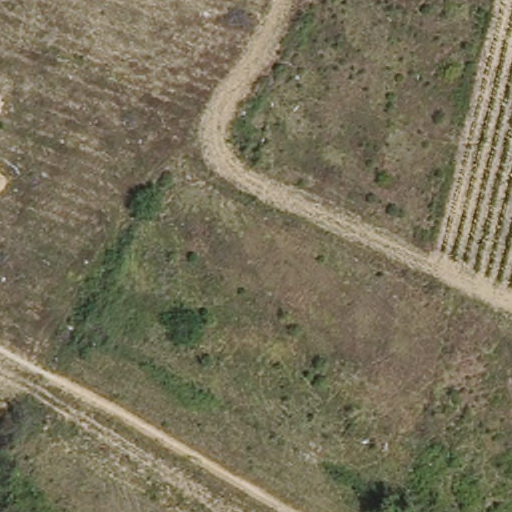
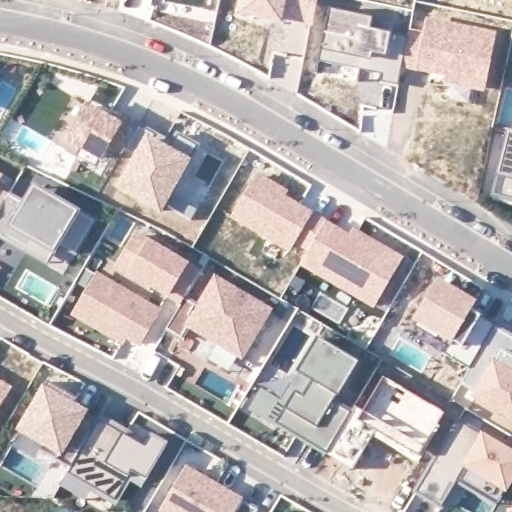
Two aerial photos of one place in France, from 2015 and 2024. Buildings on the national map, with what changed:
new [(238,0),(288,0),(284,22),(235,15),(238,0)]
new [(288,0),(317,0),(312,25),(284,22),(288,0)]
new [(329,8),(373,16),(370,28),(391,33),(387,59),(404,61),(400,68),(398,86),(377,81),(378,76),(374,75),(374,73),(319,60),(329,8)]
new [(404,61),(410,30),(422,32),(425,16),(497,30),(485,92),(471,90),(469,102),(447,97),(450,86),(443,85),(444,79),(400,68),(404,61)]
new [(108,115),(116,106),(142,122),(123,157),(112,149),(102,164),(64,142),(88,101),(108,115)]
new [(145,130),(171,145),(191,157),(193,158),(161,216),(115,188),(145,130)]
new [(498,175),(499,175),(509,132),(512,133),(512,199),(492,195),(498,175)]
new [(257,170),(289,190),(286,195),(315,212),(310,221),(297,242),(290,253),(230,217),(257,170)]
new [(21,250),(0,237),(0,208),(7,196),(8,195),(24,204),(35,186),(94,222),(75,255),(59,245),(54,253),(47,264),(21,250)]
new [(7,196),(0,208),(0,192),(7,196)]
new [(310,221),(313,222),(318,214),(349,231),(352,227),(404,256),(374,308),(299,265),(307,249),(297,242),(310,221)]
new [(135,231),(201,270),(184,297),(174,291),(169,297),(115,266),(135,231)]
new [(438,275),(477,300),(471,311),(454,343),(410,320),(438,275)]
new [(98,276),(159,312),(140,344),(127,336),(123,343),(75,315),(98,276)]
new [(185,299),(200,308),(216,280),(270,311),(242,358),(189,327),(182,339),(167,330),(185,299)]
new [(445,355),(454,343),(471,311),(497,328),(479,360),(475,357),(470,368),(445,355)]
new [(475,357),(479,360),(497,328),(512,336),(512,369),(492,358),(469,399),(464,396),(467,390),(460,386),(470,366),(475,357)]
new [(276,423),(295,392),(303,397),(313,380),(300,372),(308,359),(319,340),(357,363),(334,402),(351,413),(327,455),(308,443),(298,436),(276,423)]
new [(512,369),(512,430),(498,422),(501,417),(469,399),(492,358),(512,369)]
new [(445,414),(439,425),(442,427),(419,463),(374,436),(353,470),(327,455),(351,413),(355,406),(364,411),(384,377),(445,414)]
new [(49,382),(77,398),(73,405),(99,421),(71,468),(56,460),(60,453),(21,430),(49,382)]
new [(9,390),(0,404),(0,384),(9,390)]
new [(71,468),(99,421),(145,447),(151,436),(166,446),(146,480),(141,488),(127,480),(114,501),(93,488),(85,501),(60,487),(68,474),(71,468)]
new [(512,455),(512,479),(497,505),(457,481),(441,507),(416,492),(458,423),(512,455)]
new [(242,502),(236,512),(166,512),(163,510),(187,470),(242,502)]
new [(258,510),(257,512),(236,512),(242,502),(258,510)]

